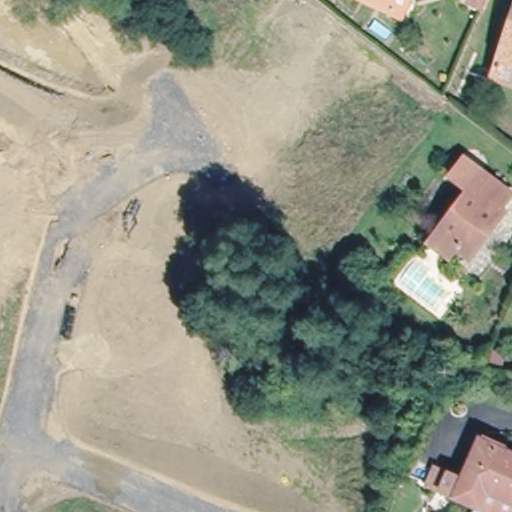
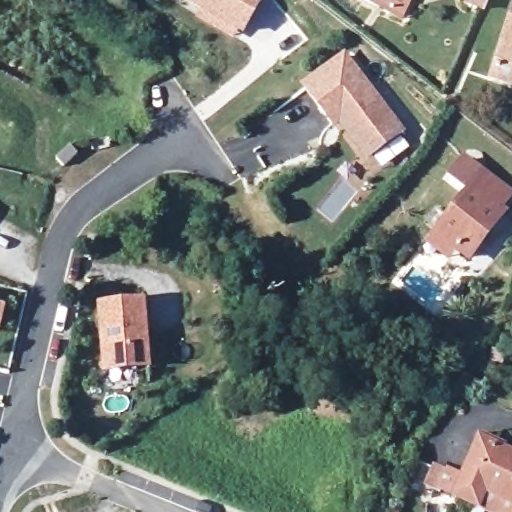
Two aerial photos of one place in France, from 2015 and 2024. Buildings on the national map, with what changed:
new [(200,13),(204,5),(195,0),(258,0),(245,25),(243,27),(238,24),(234,31),(200,13)]
unchanged [(401,19),(363,0),(409,0),(401,19)]
unchanged [(483,10),(468,3),(469,0),(487,0),(483,10)]
unchanged [(512,71),(494,65),(512,11),(512,71)]
new [(345,52),(403,126),(369,152),(341,115),(332,122),(303,85),(345,52)]
unchanged [(512,91),(488,82),(494,65),(512,71),(512,91)]
unchanged [(429,246),(438,235),(470,195),(446,175),(460,159),(483,176),(505,193),(494,207),(499,210),(485,228),(477,239),(463,256),(457,250),(448,261),(429,246)]
new [(147,293),(153,359),(109,362),(103,297),(147,293)]
unchanged [(479,504),(441,487),(448,470),(463,477),(481,437),(512,452),(512,502),(486,490),(479,504)]

